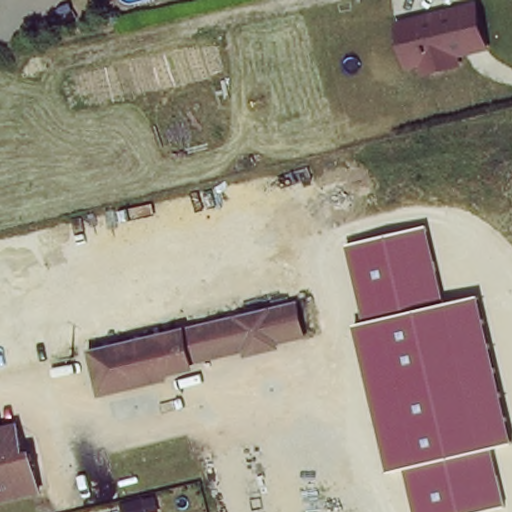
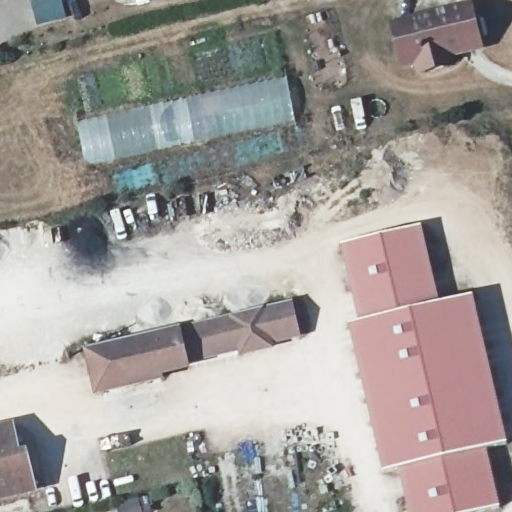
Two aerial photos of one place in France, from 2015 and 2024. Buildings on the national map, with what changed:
unchanged [(451,60),(453,70),(420,76),(418,70),(401,71),(392,19),(468,0),(477,0),(488,54),(451,60)]
new [(75,122),(285,76),(296,120),(86,167),(75,122)]
unchanged [(440,303),(473,296),(507,443),(485,448),(500,508),(484,512),(410,512),(400,469),(383,473),(349,326),(360,324),(341,246),(422,227),(440,303)]
unchanged [(293,334),(266,340),(267,346),(238,353),(237,347),(156,366),(158,376),(92,392),(83,350),(286,301),(293,334)]
unchanged [(14,421),(22,457),(28,455),(36,488),(30,490),(0,497),(0,425),(14,421)]

